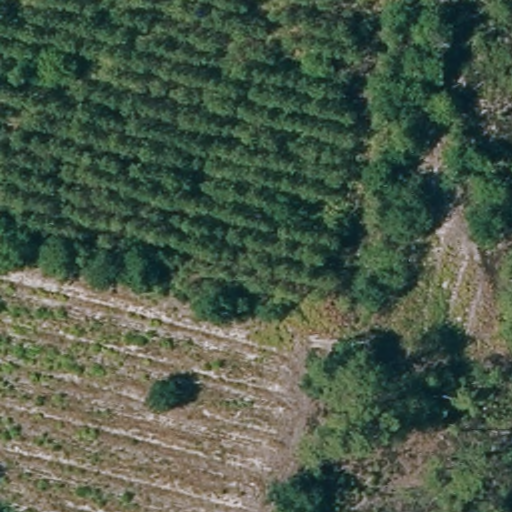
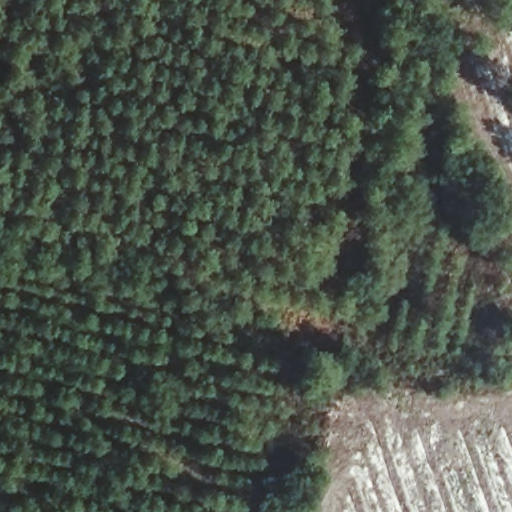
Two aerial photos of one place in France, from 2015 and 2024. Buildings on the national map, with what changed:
[]

